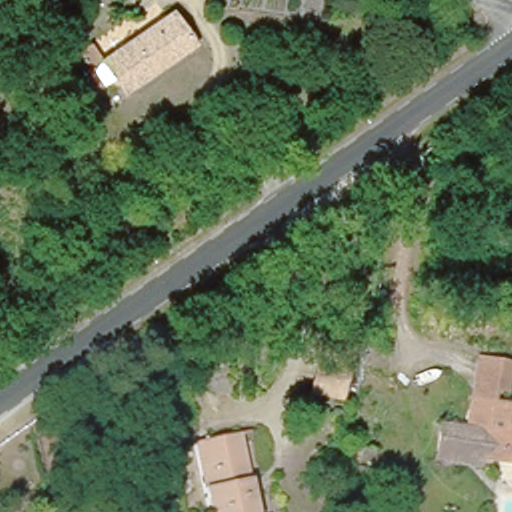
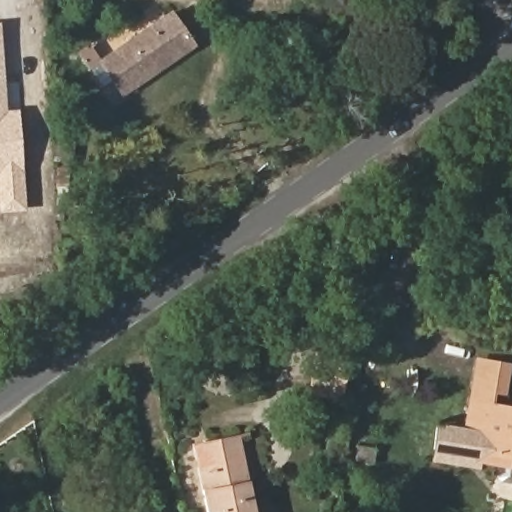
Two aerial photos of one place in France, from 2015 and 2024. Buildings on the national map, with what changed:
unchanged [(129,86),(109,56),(176,9),(196,38),(129,86)]
new [(19,111),(27,214),(0,215),(0,23),(6,111),(19,111)]
unchanged [(328,379),(334,342),(338,327),(365,333),(363,346),(357,384),(328,379)]
unchanged [(505,484),(499,479),(500,464),(482,461),(486,436),(472,433),(478,399),(485,358),(510,362),(506,389),(495,387),(493,403),(512,406),(512,485),(505,484)]
unchanged [(472,433),(486,436),(482,461),(481,469),(432,460),(439,426),(472,433)]
unchanged [(195,441),(239,431),(254,512),(252,512),(207,512),(195,441)]

